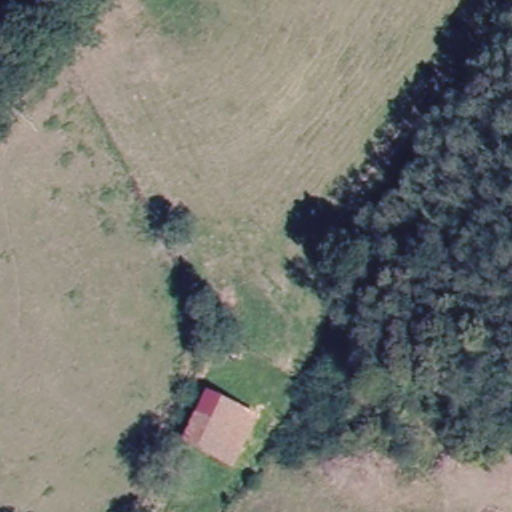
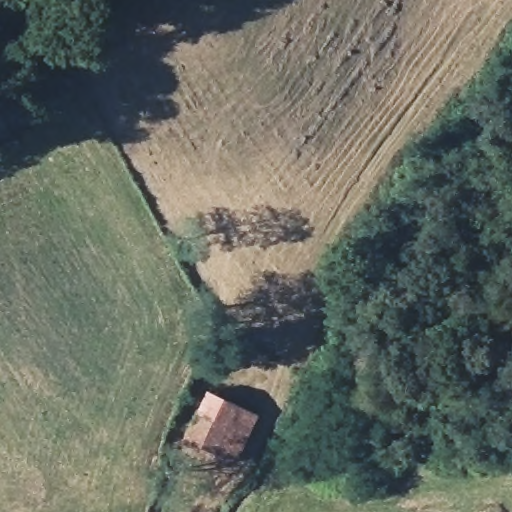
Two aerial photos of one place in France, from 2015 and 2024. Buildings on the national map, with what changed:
unchanged [(254,413),(233,462),(183,440),(204,391),(254,413)]

